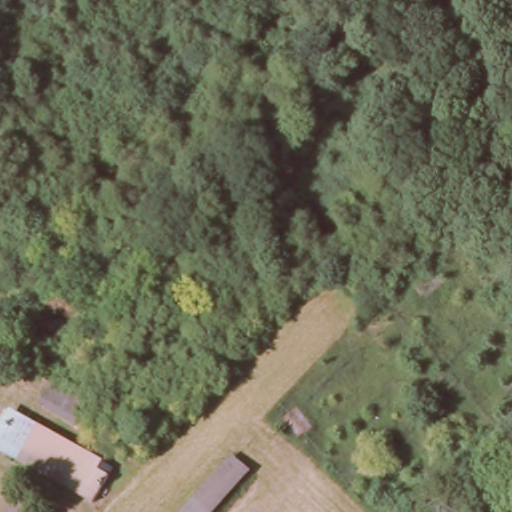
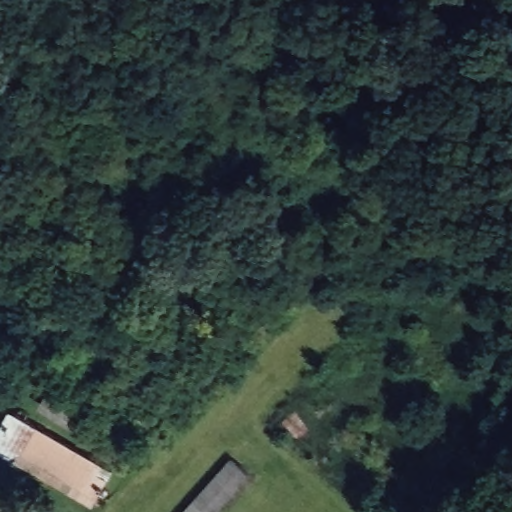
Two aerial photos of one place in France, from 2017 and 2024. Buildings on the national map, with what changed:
unchanged [(434,266),(444,278),(425,303),(415,293),(434,266)]
unchanged [(51,378),(85,397),(75,425),(42,403),(51,378)]
unchanged [(512,386),(512,396),(508,390),(512,386)]
unchanged [(294,405),(309,426),(294,442),(280,421),(294,405)]
unchanged [(0,450),(0,420),(5,408),(107,464),(92,503),(0,450)]
unchanged [(229,453),(250,477),(219,512),(175,512),(229,453)]
unchanged [(49,512),(3,512),(16,491),(49,512)]

